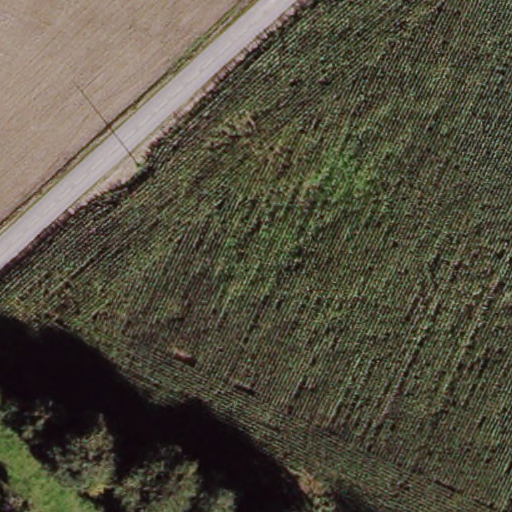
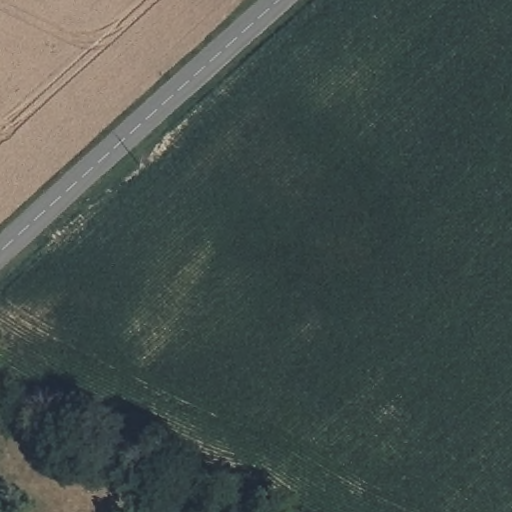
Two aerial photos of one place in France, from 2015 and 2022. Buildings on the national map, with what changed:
[]

